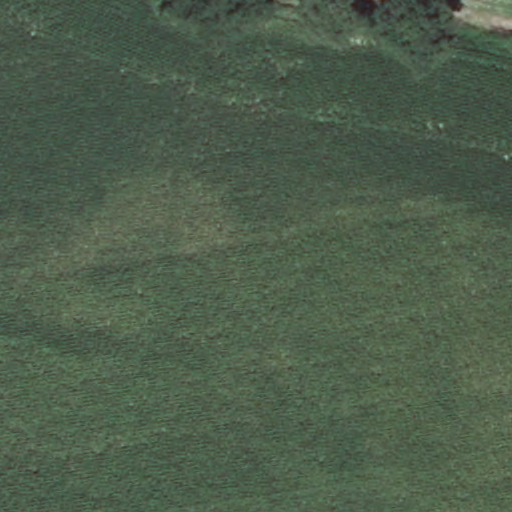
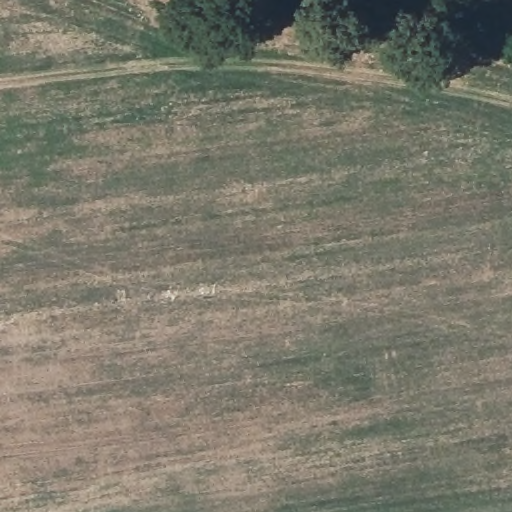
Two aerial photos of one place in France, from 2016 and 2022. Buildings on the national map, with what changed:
[]

